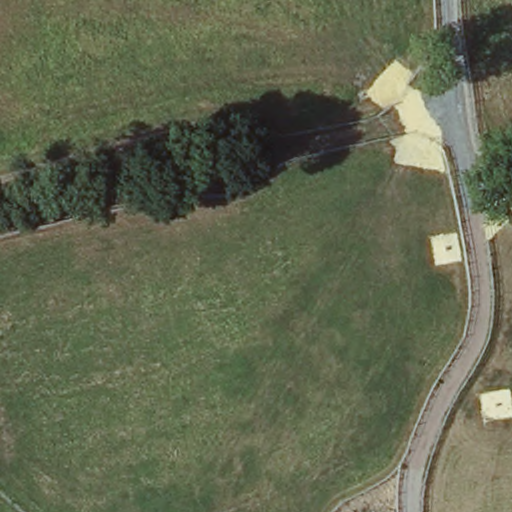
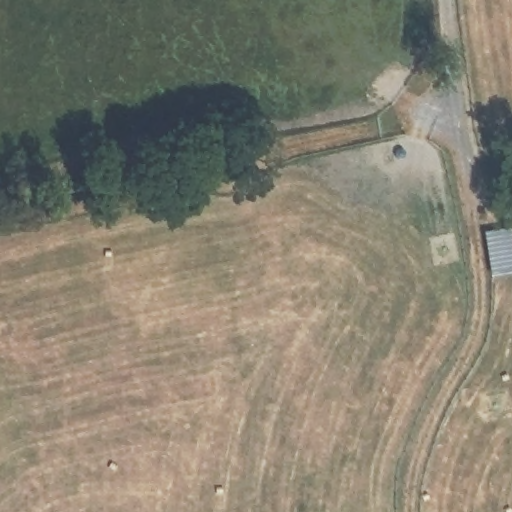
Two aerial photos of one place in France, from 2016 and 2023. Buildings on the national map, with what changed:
new [(512,228),(512,232),(512,277),(492,279),(485,234),(512,228)]

